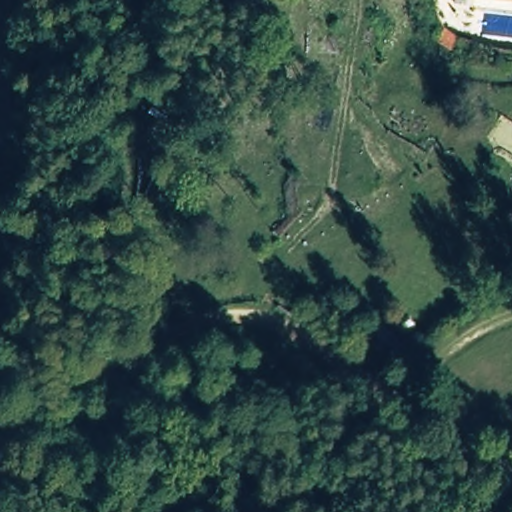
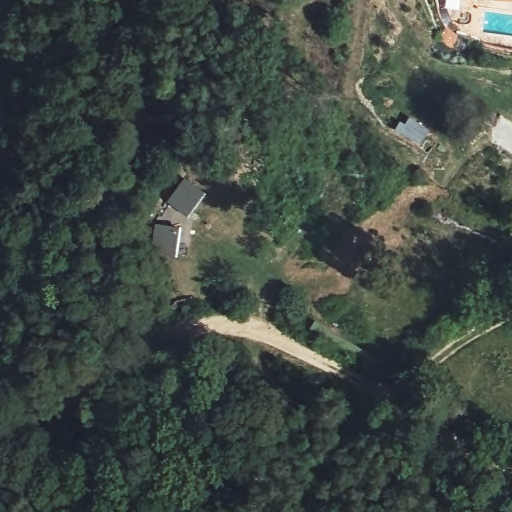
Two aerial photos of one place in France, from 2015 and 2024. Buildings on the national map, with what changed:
unchanged [(500,4),(500,0),(512,0),(512,4),(500,4)]

